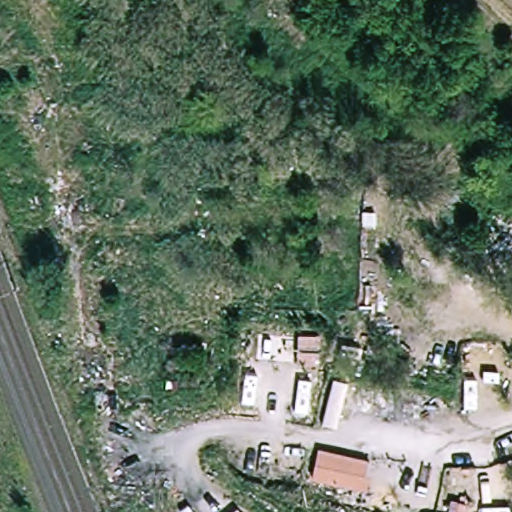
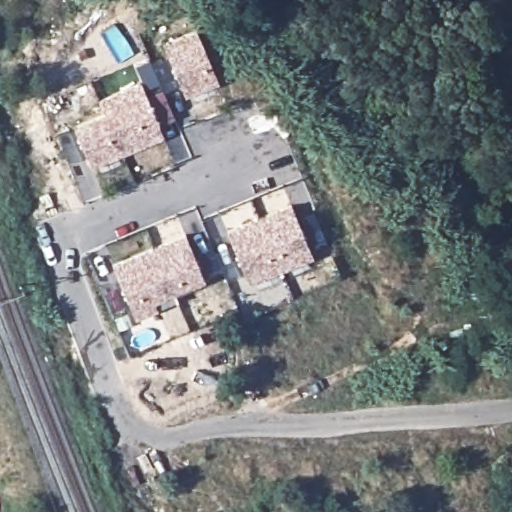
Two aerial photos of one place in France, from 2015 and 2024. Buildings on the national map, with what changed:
new [(197,30),(219,82),(186,97),(163,44),(197,30)]
new [(100,100),(141,82),(165,137),(93,169),(74,127),(105,113),(100,100)]
new [(291,204),(313,257),(250,283),(227,231),(291,204)]
new [(158,310),(136,320),(112,264),(185,234),(205,281),(155,302),(158,310)]
unchanged [(332,446),(381,458),(375,485),(326,473),(332,446)]

